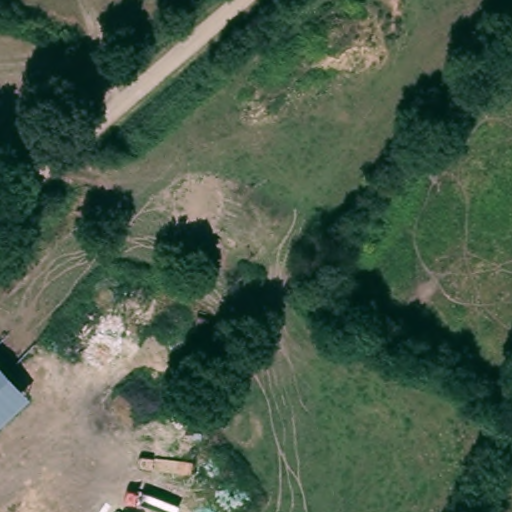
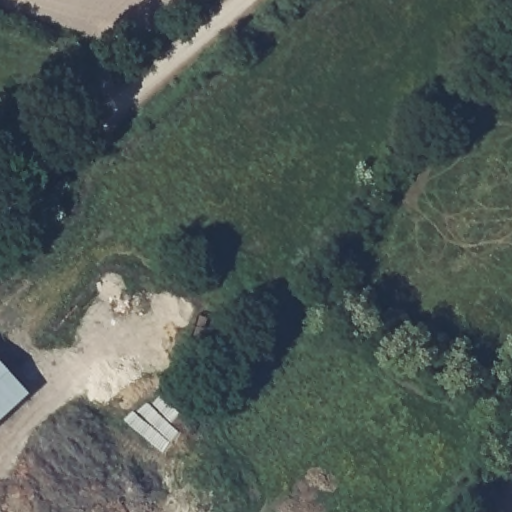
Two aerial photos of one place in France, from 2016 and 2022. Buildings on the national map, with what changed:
unchanged [(0,421),(0,363),(29,395),(0,421)]

